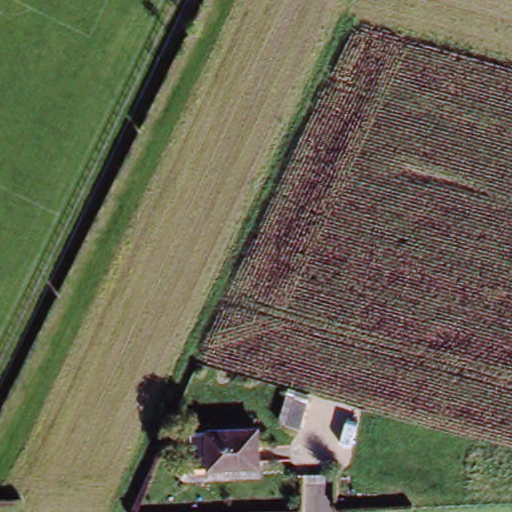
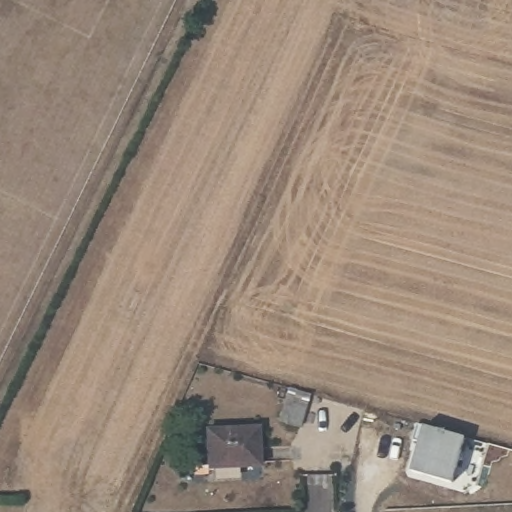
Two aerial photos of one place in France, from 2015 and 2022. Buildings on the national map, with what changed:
unchanged [(290,451),(277,446),(270,444),(280,413),(287,415),(298,418),(296,427),(297,427),(290,451)]
unchanged [(203,432),(218,432),(218,421),(267,421),(266,469),(218,469),(218,466),(203,466),(203,432)]
new [(467,437),(454,481),(410,469),(420,440),(413,438),(418,422),(467,437)]

